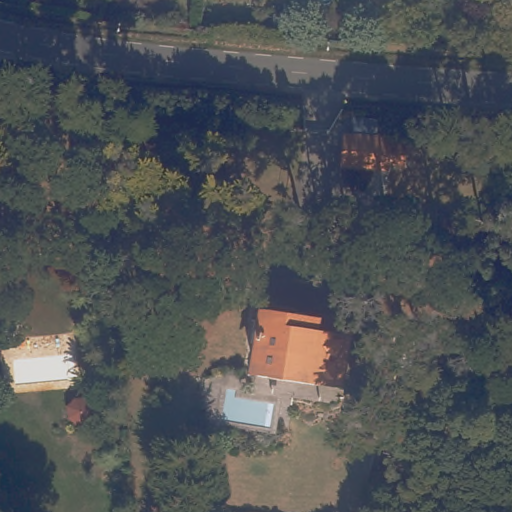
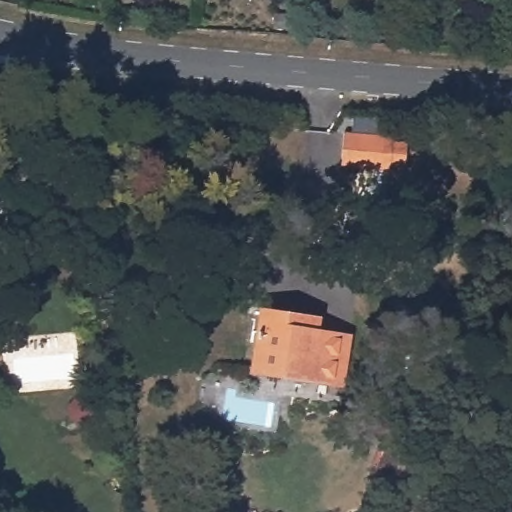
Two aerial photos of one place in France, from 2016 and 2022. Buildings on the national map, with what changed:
unchanged [(408,134),(411,164),(342,167),(342,134),(408,134)]
unchanged [(261,323),(251,321),(258,273),(300,280),(292,321),(314,325),(315,318),(359,327),(356,347),(346,345),(338,386),(252,371),(257,345),(249,343),(251,333),(258,334),(261,323)]

